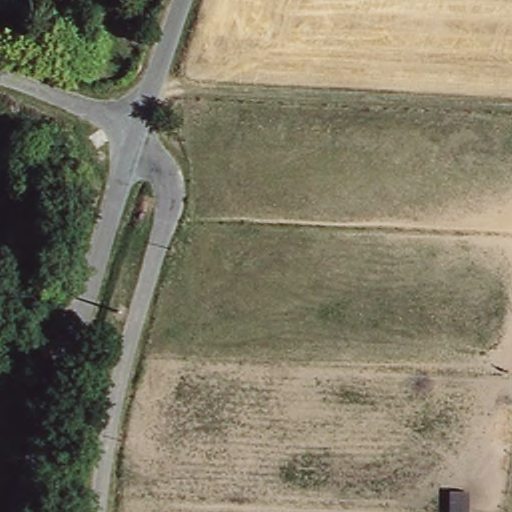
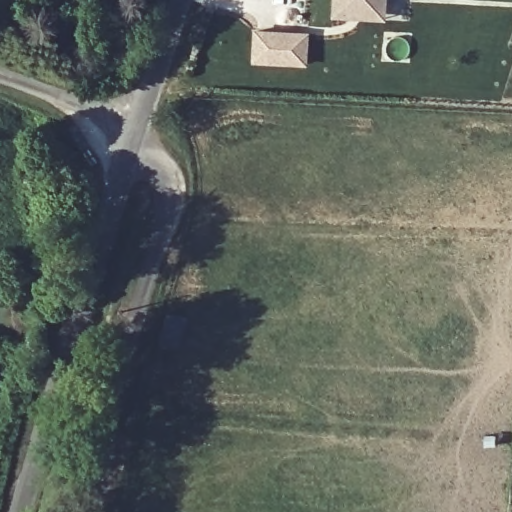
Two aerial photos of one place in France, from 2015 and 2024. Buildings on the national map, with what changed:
new [(328,21),(330,1),(330,0),(381,0),(380,9),(379,24),(347,22),(328,21)]
new [(252,36),(303,39),(302,67),(250,64),(252,36)]

